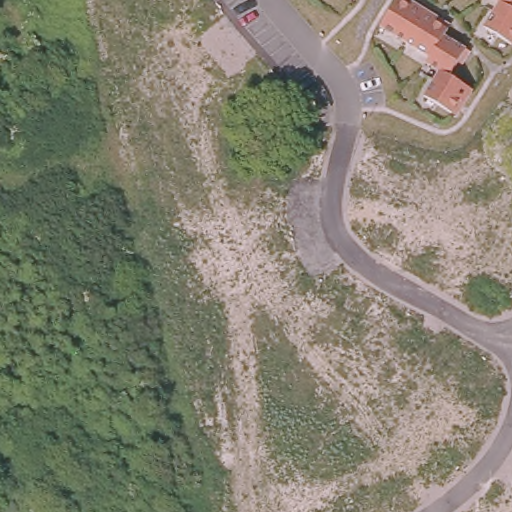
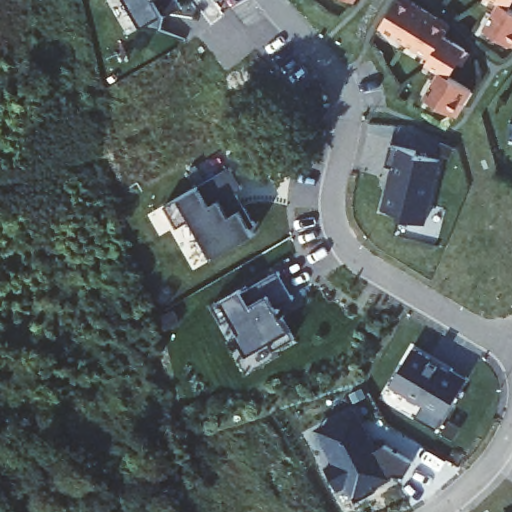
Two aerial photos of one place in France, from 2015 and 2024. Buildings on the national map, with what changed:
new [(183,5),(168,14),(164,13),(159,29),(143,25),(143,26),(127,0),(179,0),(183,5)]
unchanged [(352,0),(355,0),(354,1),(352,0)]
unchanged [(452,114),(424,96),(439,72),(426,63),(429,57),(379,26),(396,0),(408,0),(413,2),(438,18),(451,25),(448,30),(444,36),(466,49),(471,52),(463,65),(459,62),(449,77),(473,91),(464,104),(457,117),(452,114)]
unchanged [(499,3),(494,0),(512,0),(512,4),(509,8),(512,10),(512,45),(484,27),(499,3)]
new [(393,167),(385,165),(390,144),(417,151),(416,154),(439,160),(423,223),(402,218),(403,214),(383,209),(393,167)]
new [(230,166),(243,188),(234,192),(238,197),(235,199),(240,207),(244,205),(255,224),(238,233),(242,239),(210,258),(195,233),(198,231),(190,217),(177,225),(164,203),(230,166)]
new [(239,288),(241,291),(278,270),(293,297),(278,305),(279,308),(278,309),(281,315),(283,314),(284,315),(281,316),(293,336),(273,348),(269,340),(246,353),(235,332),(239,330),(231,316),(221,321),(211,304),(239,288)]
new [(411,348),(428,358),(427,359),(448,372),(450,368),(466,377),(436,429),(414,416),(422,403),(389,384),(411,348)]
new [(325,466),(333,462),(315,428),(354,409),(376,449),(384,445),(413,462),(404,476),(393,475),(392,477),(376,486),(377,489),(355,501),(347,486),(338,490),(325,466)]
new [(459,427),(452,438),(442,431),(448,421),(459,427)]

